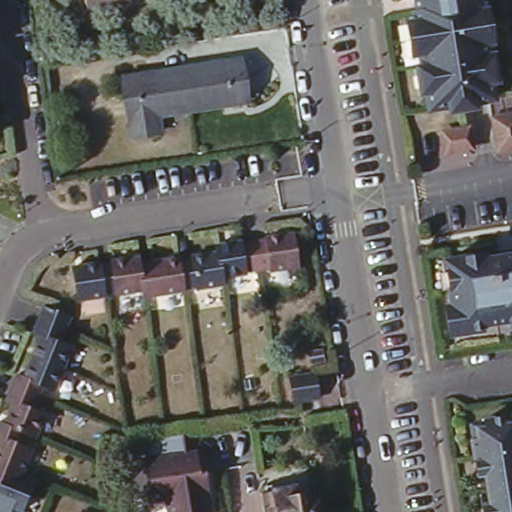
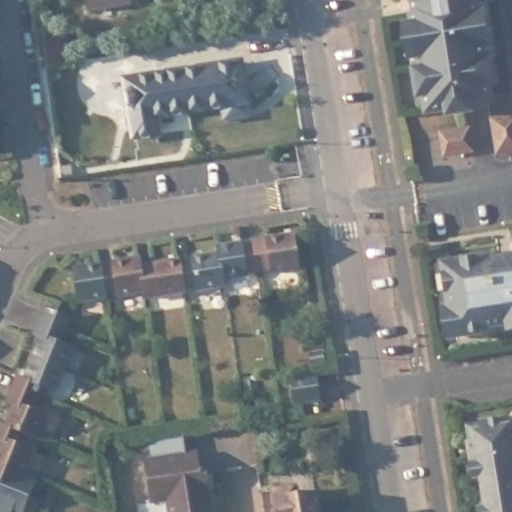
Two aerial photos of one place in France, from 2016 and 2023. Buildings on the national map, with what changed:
unchanged [(81,10),(79,0),(124,0),(124,2),(81,10)]
unchanged [(403,0),(490,0),(507,102),(422,114),(403,0)]
unchanged [(239,67),(245,107),(152,121),(156,139),(132,142),(122,85),(239,67)]
unchanged [(490,156),(485,112),(512,111),(512,154),(490,156)]
unchanged [(103,262),(103,266),(117,263),(116,260),(142,256),(143,262),(182,256),(182,260),(195,258),(193,254),(219,251),(218,245),(242,241),(242,244),(268,241),(267,237),(293,232),(298,265),(272,270),(272,265),(247,270),(247,275),(222,278),(222,286),(196,288),(197,291),(147,299),(146,290),(121,295),(120,291),(106,292),(107,297),(79,300),(74,267),(103,262)]
unchanged [(457,312),(448,259),(478,255),(478,261),(512,256),(512,318),(490,322),(490,328),(466,331),(460,332),(457,312)]
unchanged [(9,398),(4,396),(14,368),(20,370),(35,332),(29,329),(41,298),(46,301),(45,303),(67,311),(57,336),(68,340),(50,386),(37,381),(29,404),(41,408),(31,432),(19,427),(15,439),(26,443),(16,469),(28,474),(16,506),(7,502),(4,510),(0,508),(0,418),(1,418),(9,398)]
unchanged [(318,370),(320,394),(297,397),(293,373),(318,370)]
unchanged [(490,432),(487,417),(511,413),(511,420),(512,419),(512,512),(496,512),(487,451),(478,452),(476,434),(490,432)]
unchanged [(204,440),(206,456),(209,456),(217,504),(214,505),(214,512),(166,512),(157,447),(204,440)]
unchanged [(298,483),(301,495),(321,491),(324,512),(269,512),(266,490),(298,483)]

